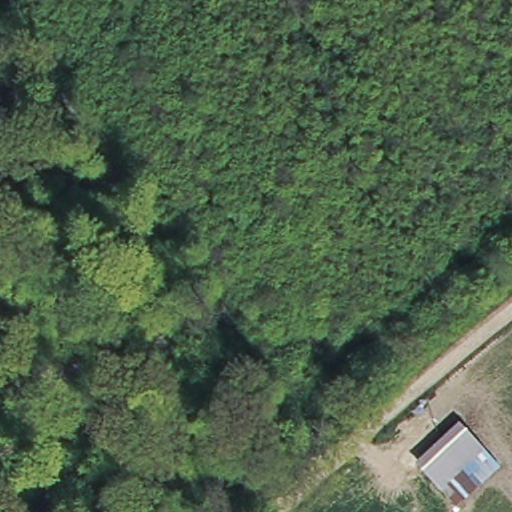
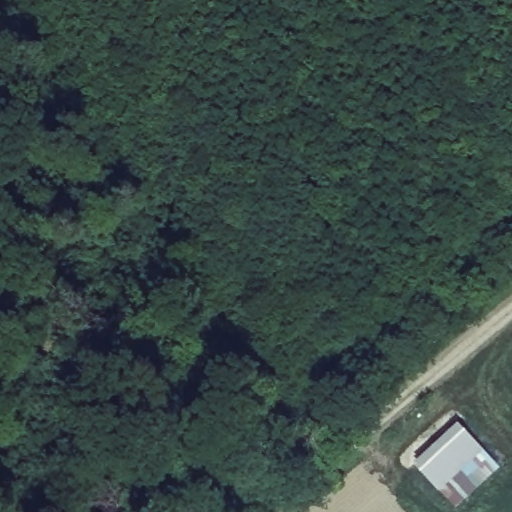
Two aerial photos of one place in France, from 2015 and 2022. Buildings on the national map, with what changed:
unchanged [(457,422),(484,447),(437,488),(413,463),(457,422)]
unchanged [(456,506),(437,488),(484,447),(501,467),(456,506)]

